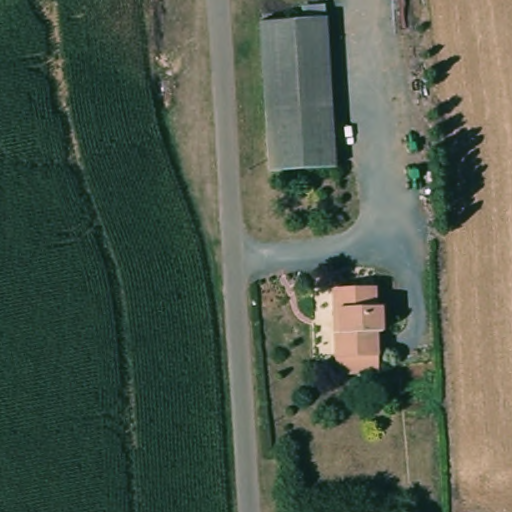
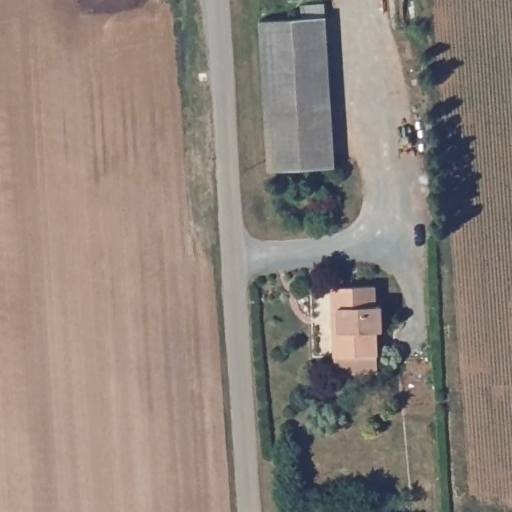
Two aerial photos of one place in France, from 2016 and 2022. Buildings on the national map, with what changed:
unchanged [(254,16),(326,10),(334,167),(267,172),(254,16)]
unchanged [(385,328),(377,329),(377,350),(334,352),(332,287),(375,286),(376,306),(384,305),(385,328)]

